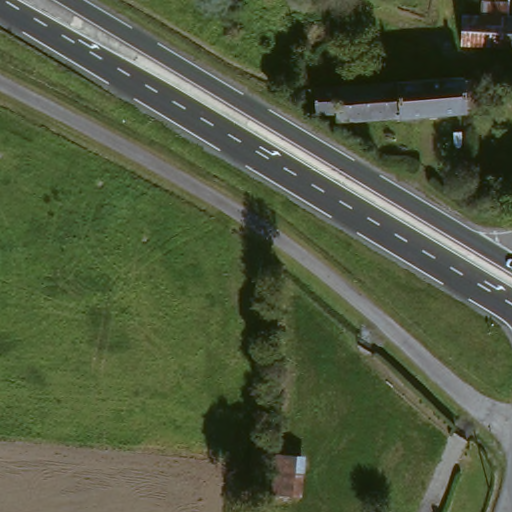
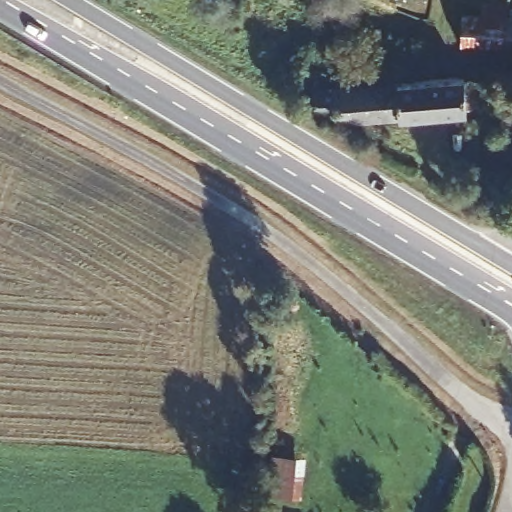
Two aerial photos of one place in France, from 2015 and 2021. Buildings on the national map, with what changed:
unchanged [(457,56),(457,33),(457,27),(480,27),(480,15),(503,14),(503,29),(503,56),(457,56)]
unchanged [(512,57),(503,56),(503,29),(512,29),(512,57)]
unchanged [(462,115),(333,129),(331,116),(313,116),(312,96),(455,82),(460,81),(462,115)]
unchanged [(267,461),(298,464),(294,501),(264,499),(267,461)]

